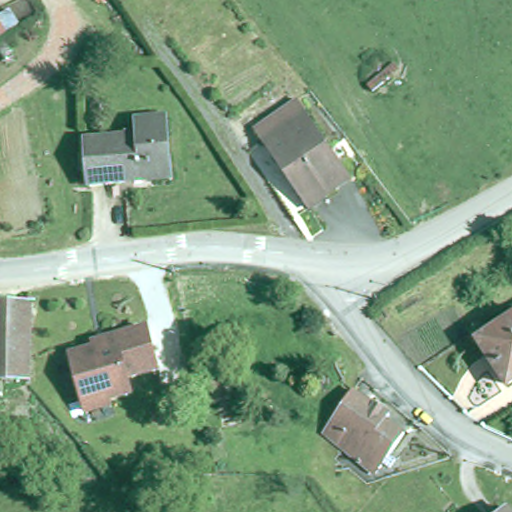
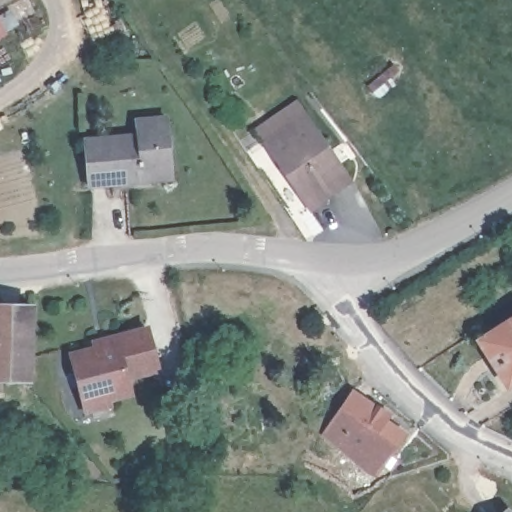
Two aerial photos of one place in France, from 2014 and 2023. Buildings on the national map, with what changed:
unchanged [(4,31),(0,33),(0,24),(4,31)]
unchanged [(305,197),(266,140),(309,111),(354,176),(330,193),(311,206),(305,197)]
unchanged [(137,132),(137,118),(167,116),(171,179),(88,183),(85,135),(137,132)]
unchanged [(0,381),(0,306),(32,307),(30,381),(0,381)]
unchanged [(512,319),(512,383),(508,386),(495,366),(479,342),(488,335),(512,319)]
unchanged [(83,413),(82,407),(72,355),(96,351),(95,345),(117,340),(151,334),(158,376),(127,382),(130,398),(106,402),(108,408),(83,413)]
unchanged [(226,395),(214,402),(205,386),(217,379),(226,395)]
unchanged [(390,468),(384,464),(376,475),(324,433),(327,429),(353,392),(389,415),(386,421),(405,434),(389,456),(395,461),(390,468)]
unchanged [(507,509),(509,512),(503,512),(507,509)]

